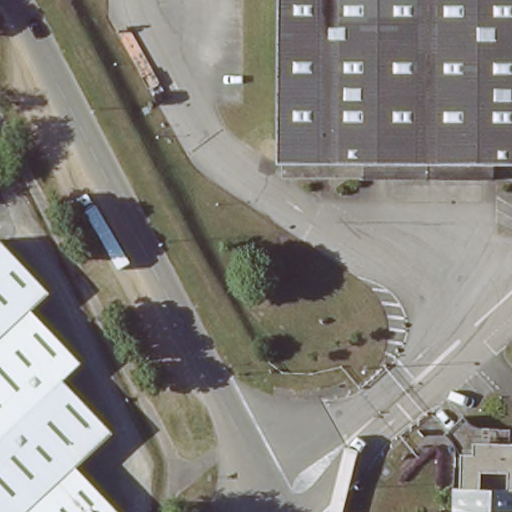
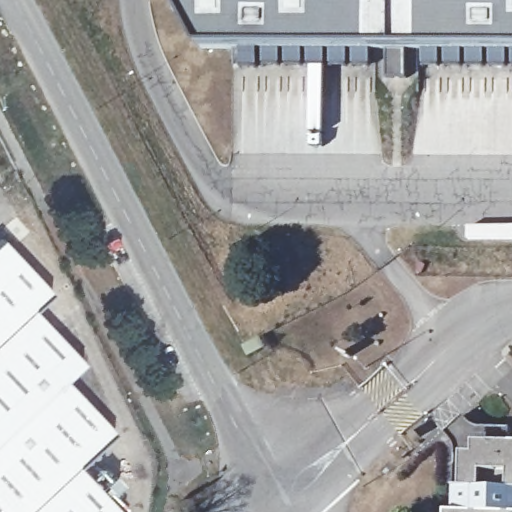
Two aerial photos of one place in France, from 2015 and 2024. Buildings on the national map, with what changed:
new [(426,67),(425,47),(411,47),(409,77),(391,78),(393,46),(380,46),(376,64),(243,68),(243,45),(203,45),(178,0),(512,0),(512,67),(426,67)]
demolished [(512,0),(512,165),(280,164),(280,0),(512,0)]
unchanged [(52,293),(34,310),(83,362),(65,379),(115,432),(79,466),(122,512),(0,512),(0,238),(1,237),(52,293)]
unchanged [(442,512),(449,512),(452,454),(451,448),(449,444),(446,440),(441,434),(459,417),(463,421),(468,425),(471,427),(476,428),(506,429),(506,443),(512,444),(512,512),(442,512)]

